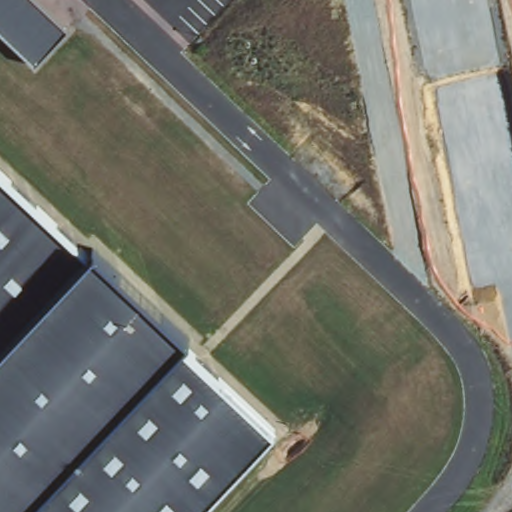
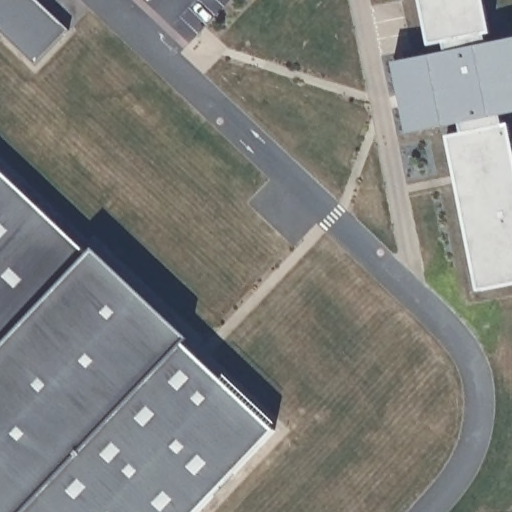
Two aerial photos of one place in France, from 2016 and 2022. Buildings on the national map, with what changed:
unchanged [(35,65),(0,32),(0,0),(36,0),(67,29),(35,65)]
new [(477,282),(447,135),(462,132),(460,123),(458,113),(443,116),(440,98),(427,101),(421,76),(435,73),(432,64),(447,61),(445,51),(443,42),(428,45),(419,0),(484,0),(491,31),(485,33),(487,42),(489,52),(507,48),(512,69),(512,102),(500,104),(502,114),(504,124),(510,122),(512,134),(512,283),(480,290),(477,282)]
new [(512,37),(512,69),(507,48),(489,52),(487,42),(512,37)]
new [(445,51),(447,61),(432,64),(435,73),(421,76),(427,101),(440,98),(443,116),(458,113),(460,123),(409,133),(395,62),(445,51)]
new [(502,114),(500,104),(512,102),(512,112),(502,114)]
unchanged [(95,251),(186,339),(182,344),(274,430),(196,512),(0,512),(0,173),(89,258),(95,251)]

